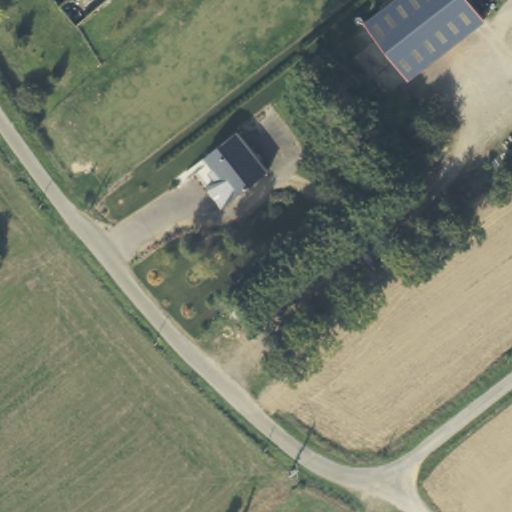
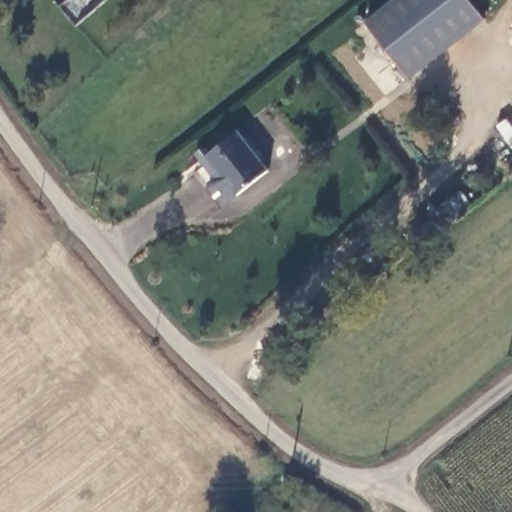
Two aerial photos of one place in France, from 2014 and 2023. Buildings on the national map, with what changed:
unchanged [(385,0),(471,0),(482,14),(405,73),(362,17),(385,0)]
unchanged [(270,171),(239,196),(208,156),(240,132),(270,171)]

